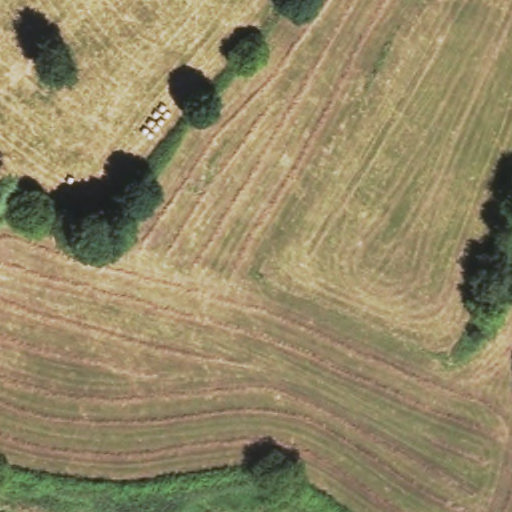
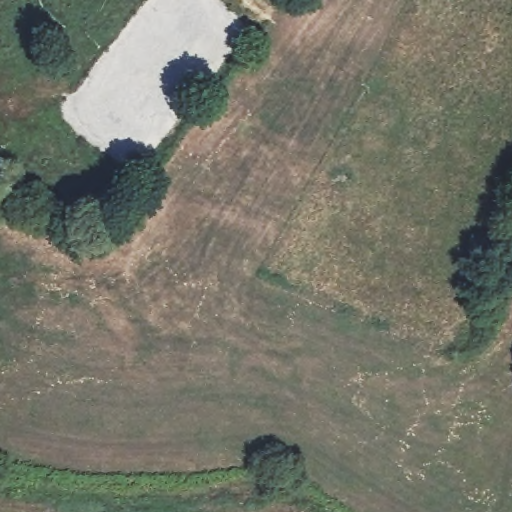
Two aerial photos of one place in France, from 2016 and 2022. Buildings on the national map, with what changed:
[]

